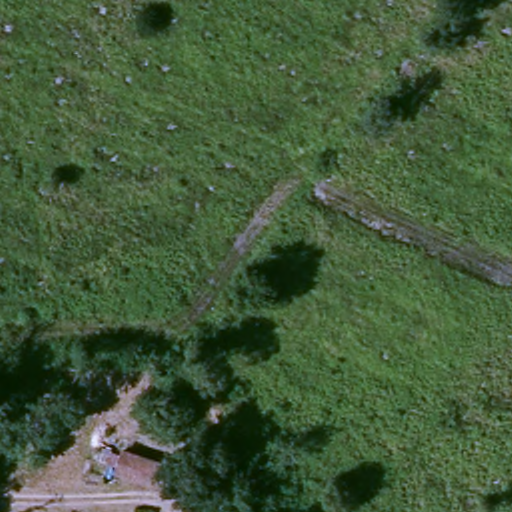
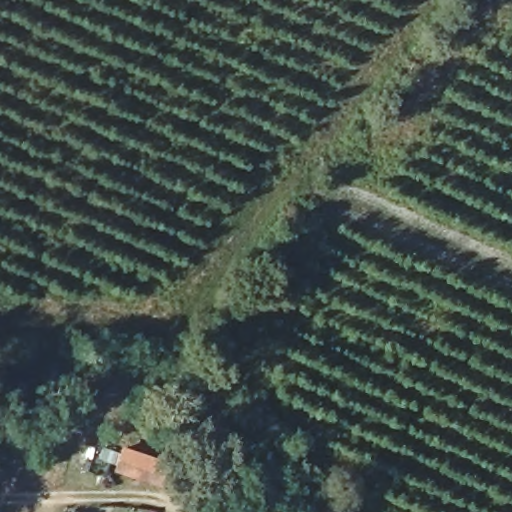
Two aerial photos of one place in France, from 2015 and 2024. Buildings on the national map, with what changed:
unchanged [(175,460),(166,485),(113,469),(113,465),(96,461),(102,444),(121,453),(124,442),(175,460)]

